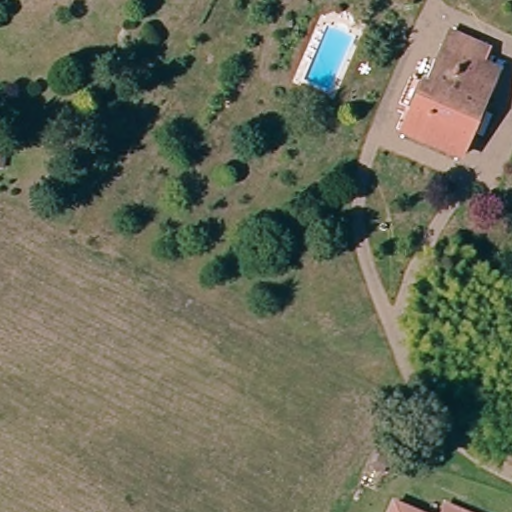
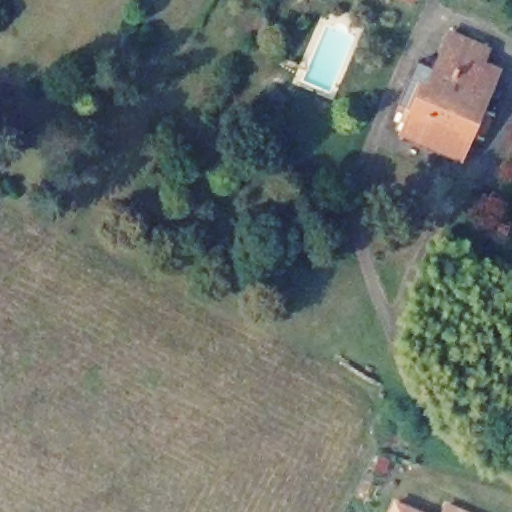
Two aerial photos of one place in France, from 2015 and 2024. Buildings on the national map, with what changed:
unchanged [(415,0),(418,0),(417,1),(415,0)]
unchanged [(479,52),(474,62),(492,72),(476,107),(465,103),(455,125),(466,132),(455,155),(398,132),(419,86),(425,89),(448,37),(479,52)]
unchanged [(402,498),(432,512),(396,512),(402,498)]
unchanged [(447,501),(471,512),(440,512),(447,501)]

